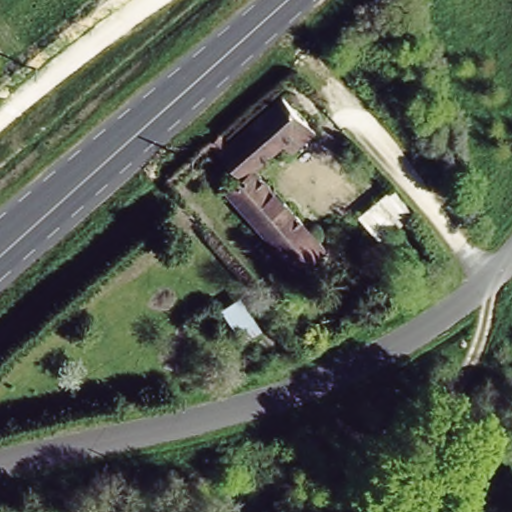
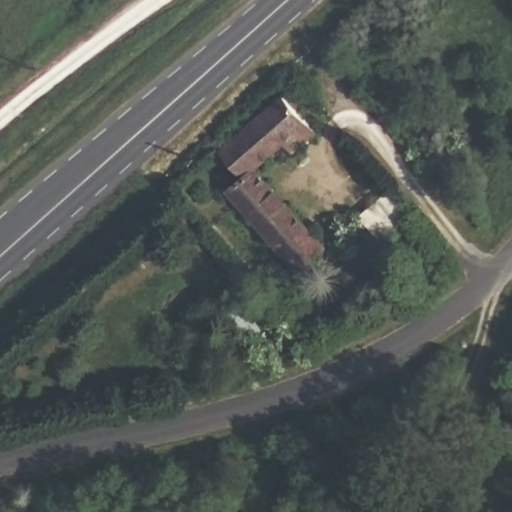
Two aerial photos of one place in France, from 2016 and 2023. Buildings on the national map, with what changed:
unchanged [(304,118),(322,139),(299,158),(288,145),(258,169),(312,235),(316,232),(333,254),(300,281),(228,194),(241,183),(213,149),(284,85),(291,79),(314,109),(304,118)]
unchanged [(375,239),(359,219),(393,193),(408,213),(375,239)]
unchanged [(262,329),(246,341),(222,311),(241,299),(262,329)]

